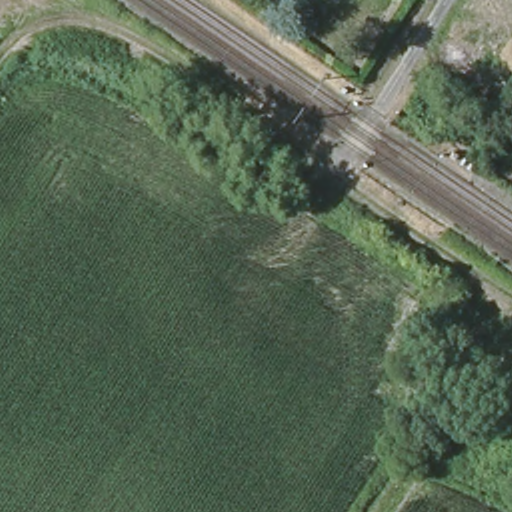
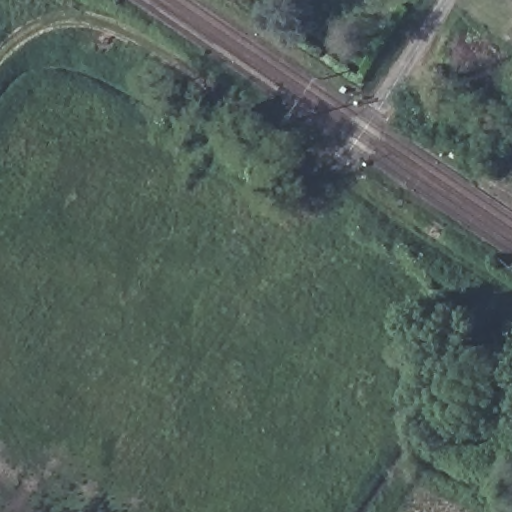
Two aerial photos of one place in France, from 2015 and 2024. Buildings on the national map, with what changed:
[]

